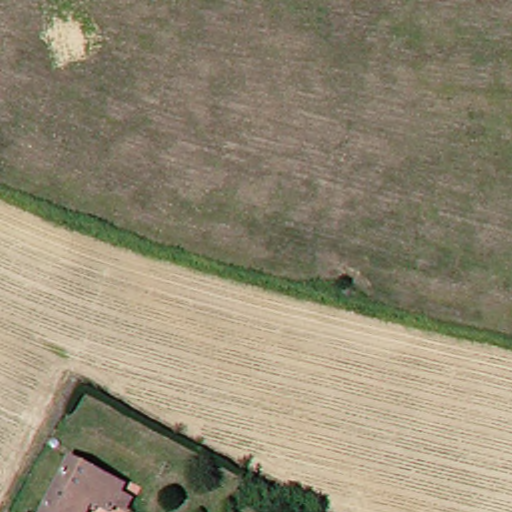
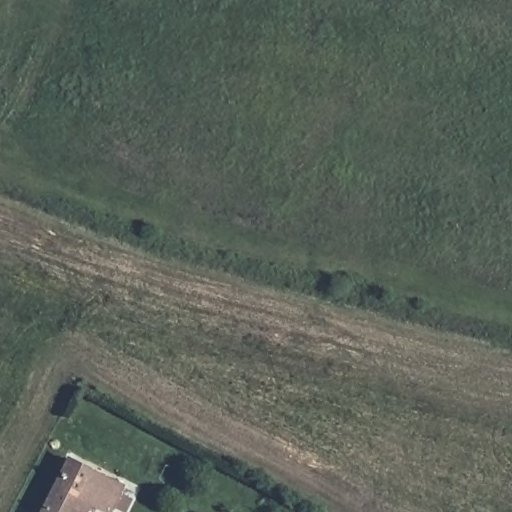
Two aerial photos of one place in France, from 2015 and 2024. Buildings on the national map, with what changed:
unchanged [(106,512),(101,509),(100,512),(55,512),(81,460),(135,487),(131,495),(142,500),(136,512),(125,507),(122,512),(118,512),(108,508),(106,512)]

